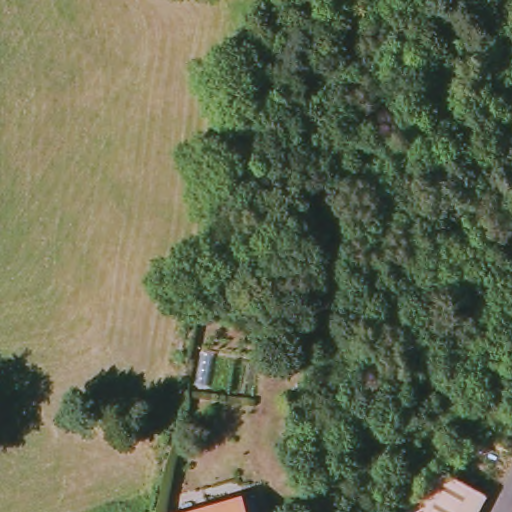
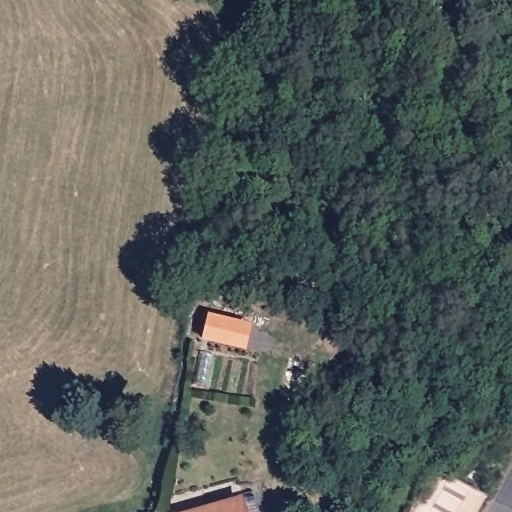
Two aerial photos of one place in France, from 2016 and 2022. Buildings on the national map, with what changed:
new [(206,318),(248,328),(243,349),(201,339),(206,318)]
unchanged [(486,501),(479,512),(415,512),(437,473),(486,501)]
unchanged [(246,503),(246,512),(212,512),(246,503)]

